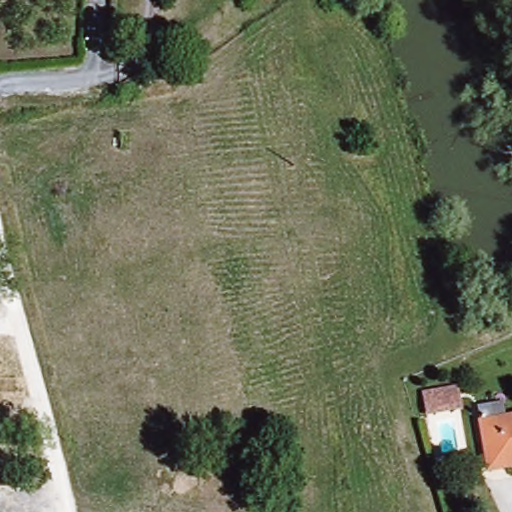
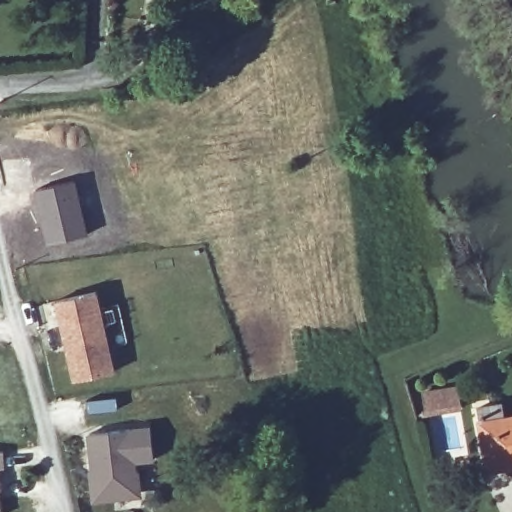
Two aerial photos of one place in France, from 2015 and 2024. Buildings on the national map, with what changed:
new [(75,179),(89,232),(46,245),(30,192),(75,179)]
new [(117,370),(74,381),(56,301),(97,291),(117,370)]
new [(456,388),(460,405),(428,412),(424,395),(456,388)]
unchanged [(483,420),(512,414),(512,466),(494,470),(483,420)]
new [(137,494),(95,498),(88,435),(150,428),(154,460),(157,491),(137,494)]
new [(8,468),(0,468),(0,451),(5,451),(8,468)]
new [(2,512),(0,512),(0,489),(2,512)]

